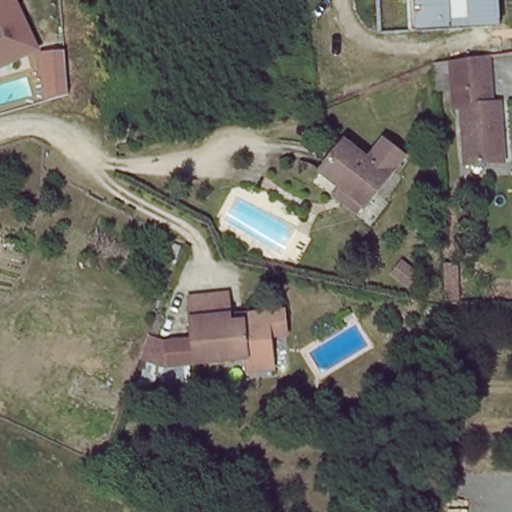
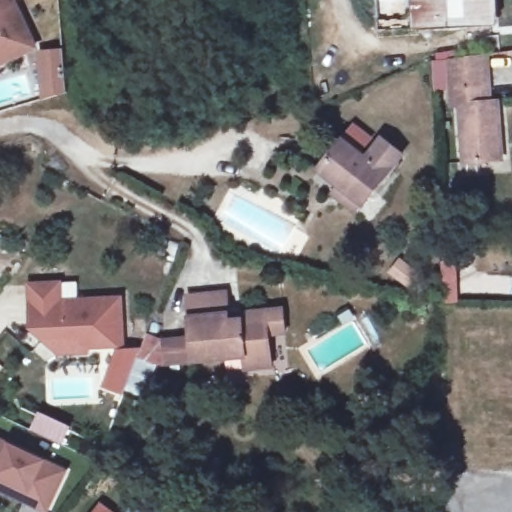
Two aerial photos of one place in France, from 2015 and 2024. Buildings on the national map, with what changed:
unchanged [(0,0),(18,0),(18,1),(41,50),(0,69),(0,0)]
unchanged [(488,24),(410,29),(410,0),(487,0),(488,24)]
new [(67,96),(45,100),(42,54),(64,52),(67,96)]
unchanged [(484,59),(482,108),(490,109),(488,167),(446,167),(448,110),(440,110),(440,59),(484,59)]
unchanged [(336,198),(344,189),(320,169),(344,139),(368,161),(384,143),(406,161),(366,207),(357,217),(336,198)]
unchanged [(419,277),(409,294),(384,277),(398,262),(419,277)]
unchanged [(458,263),(458,302),(440,302),(439,264),(458,263)]
new [(124,348),(88,349),(88,355),(57,356),(26,326),(26,282),(62,280),(63,299),(123,294),(124,348)]
unchanged [(192,331),(186,298),(207,294),(227,291),(231,316),(285,307),(290,336),(271,340),(277,368),(249,374),(246,358),(199,367),(197,359),(192,331)]
unchanged [(192,331),(197,359),(142,363),(141,337),(192,331)]
new [(42,512),(0,492),(0,438),(68,470),(47,512),(42,512)]
new [(114,512),(93,512),(100,501),(114,512)]

